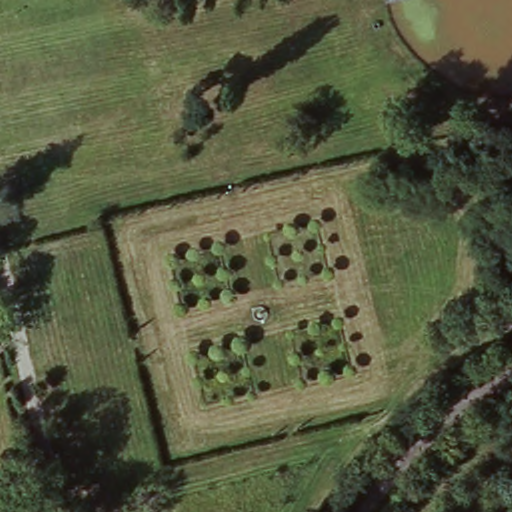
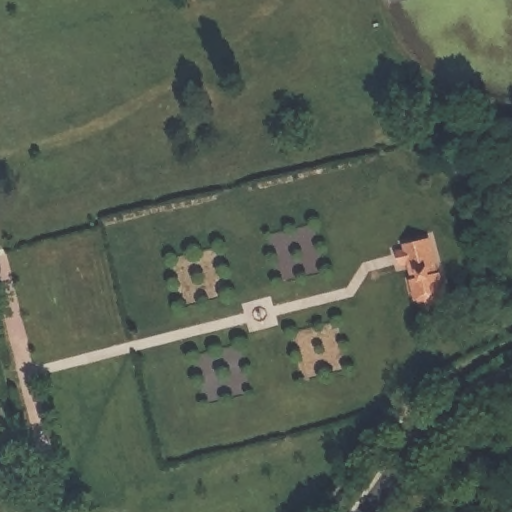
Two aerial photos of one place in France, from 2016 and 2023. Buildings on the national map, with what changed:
new [(438,274),(436,275),(440,292),(436,299),(426,302),(419,298),(414,280),(412,281),(407,262),(398,264),(395,252),(404,250),(403,246),(429,239),(438,274)]

